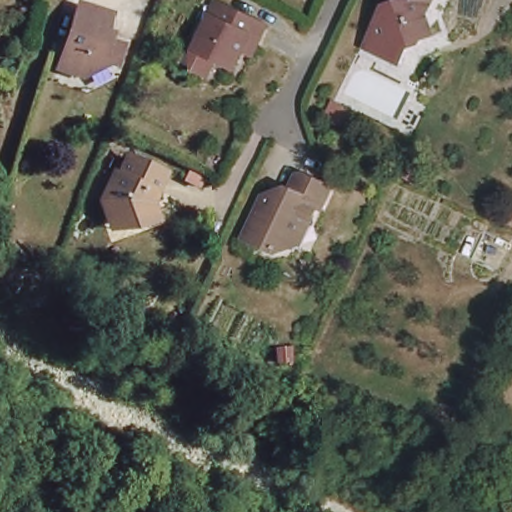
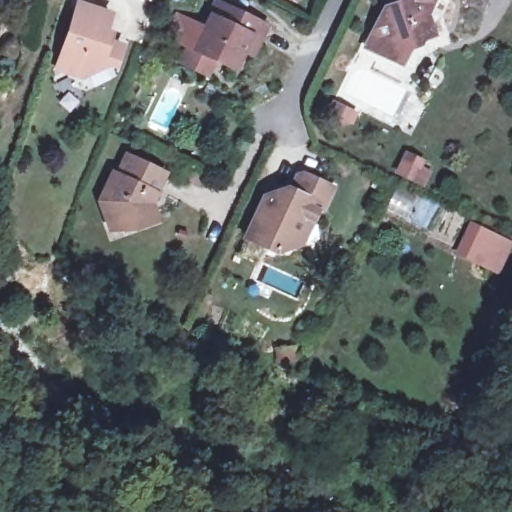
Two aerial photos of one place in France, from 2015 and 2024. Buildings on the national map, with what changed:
unchanged [(248,48),(242,45),(234,61),(214,51),(205,65),(187,56),(195,40),(202,43),(226,0),(232,0),(271,21),(259,43),(255,51),(248,48)]
unchanged [(369,45),(387,11),(404,3),(402,0),(440,0),(429,22),(437,39),(418,44),(415,44),(400,70),(380,59),(365,51),(369,45)]
unchanged [(85,76),(62,68),(80,4),(112,15),(107,28),(110,30),(109,35),(125,40),(120,59),(113,57),(85,76)]
unchanged [(106,223),(105,199),(115,175),(120,176),(129,158),(163,176),(151,203),(151,233),(127,233),(127,230),(106,230),(106,223)]
unchanged [(297,242),(294,249),(279,256),(247,239),(268,199),(272,199),(275,198),(287,193),(289,194),(293,196),(301,180),(311,180),(336,193),(325,214),(320,211),(312,230),(304,246),(297,242)]
unchanged [(5,210),(0,222),(0,208),(5,210)]
new [(512,240),(512,245),(499,275),(455,256),(470,222),(512,240)]

